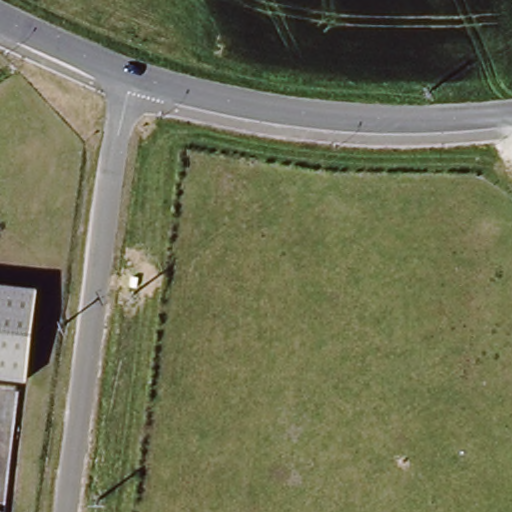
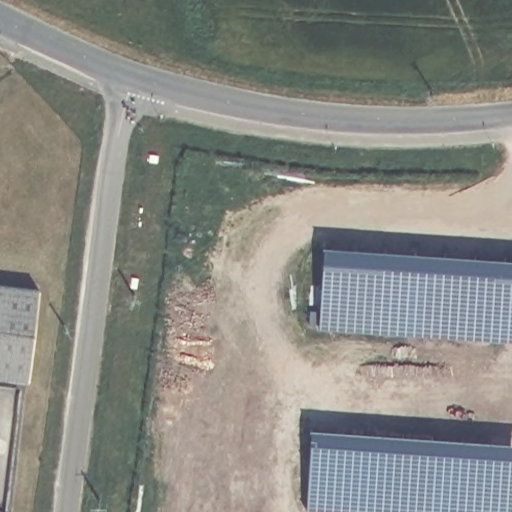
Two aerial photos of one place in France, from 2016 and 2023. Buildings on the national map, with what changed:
new [(325,244),(512,257),(512,340),(320,328),(325,244)]
unchanged [(40,285),(29,382),(0,378),(0,281),(40,285)]
new [(313,426),(512,440),(512,512),(339,512),(309,510),(313,426)]

